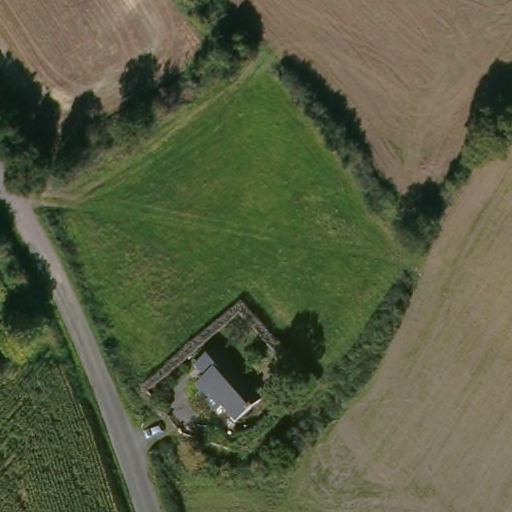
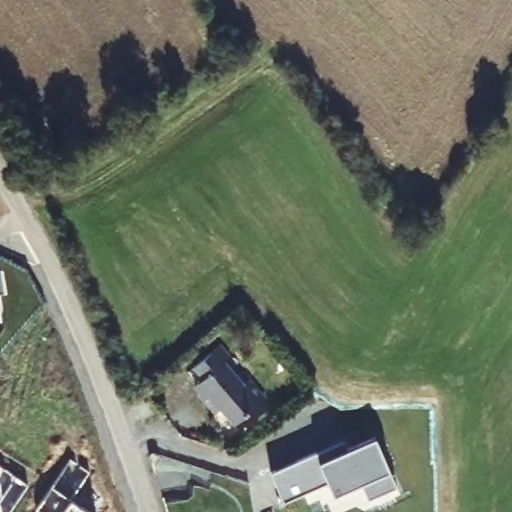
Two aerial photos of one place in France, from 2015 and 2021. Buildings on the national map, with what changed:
new [(3,292),(0,292),(0,274),(3,292)]
unchanged [(223,344),(235,361),(228,367),(243,387),(251,381),(265,400),(228,428),(219,417),(214,421),(195,396),(199,393),(193,383),(199,378),(191,367),(223,344)]
new [(273,474),(345,443),(349,451),(377,439),(391,472),(398,488),(369,500),(364,484),(334,496),(330,483),(285,502),(273,474)]
new [(35,510),(69,459),(89,472),(70,500),(89,512),(38,512),(35,510)]
new [(4,512),(0,512),(0,465),(24,482),(4,512)]

